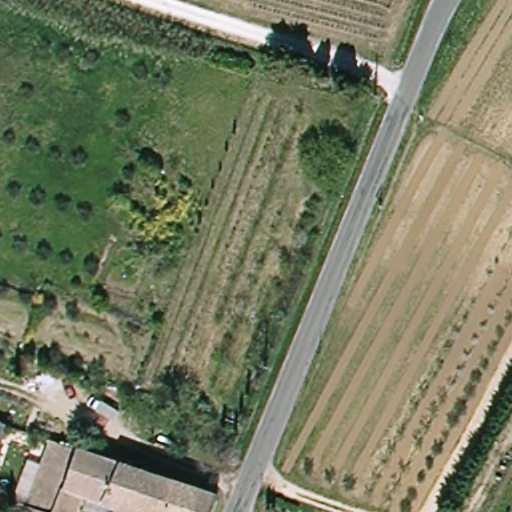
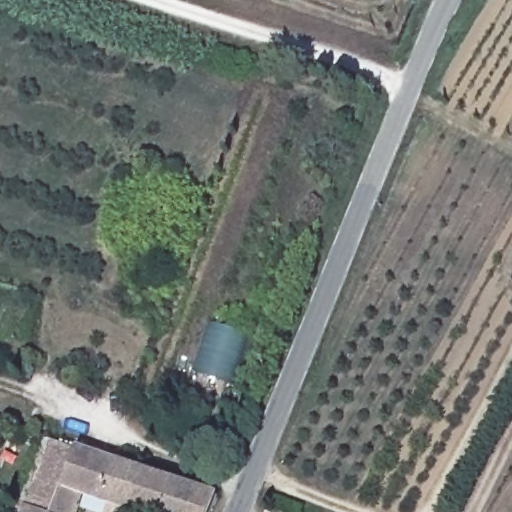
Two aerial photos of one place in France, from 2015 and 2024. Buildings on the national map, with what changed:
new [(208,322),(248,336),(232,385),(192,372),(208,322)]
unchanged [(4,457),(0,456),(0,421),(14,426),(4,457)]
unchanged [(115,512),(29,512),(42,468),(49,443),(77,452),(174,483),(162,512),(131,512),(117,507),(115,512)]
unchanged [(222,498),(216,512),(162,512),(174,483),(222,498)]

